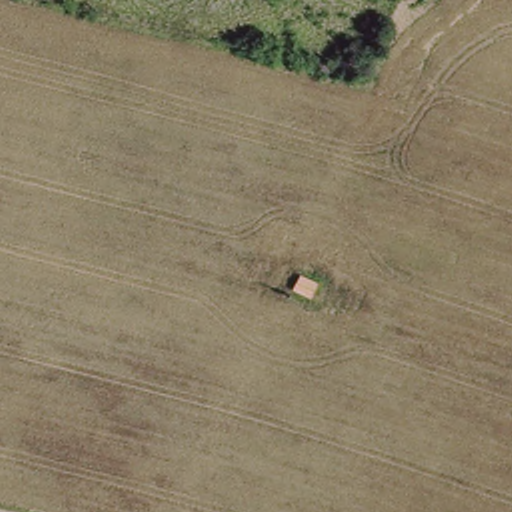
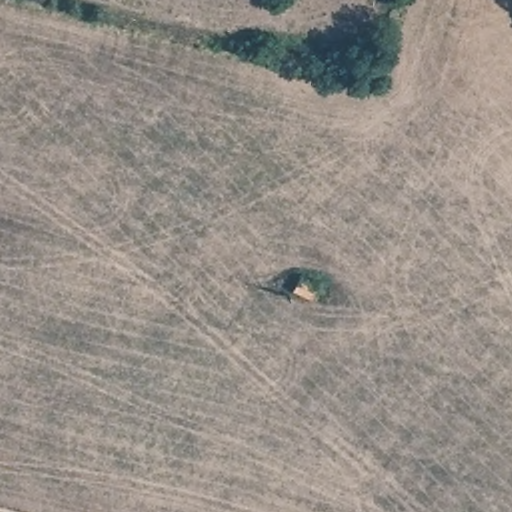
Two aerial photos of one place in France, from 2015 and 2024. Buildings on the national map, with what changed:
unchanged [(292,294),(302,275),(320,280),(311,298),(292,294)]

